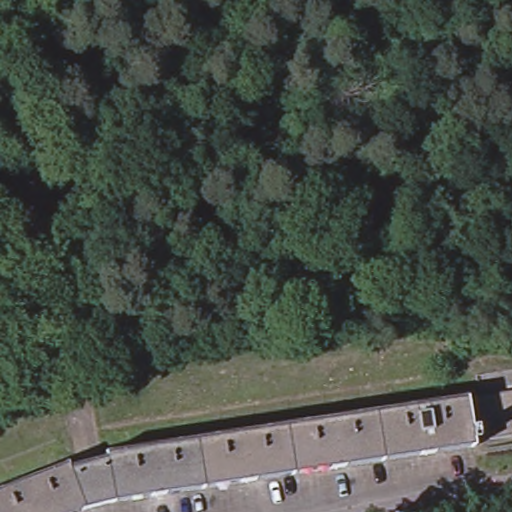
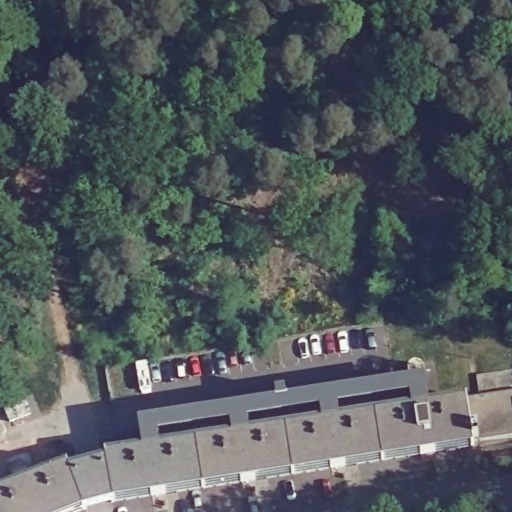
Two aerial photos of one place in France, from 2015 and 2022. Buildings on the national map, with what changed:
unchanged [(475,375),(512,369),(512,435),(472,442),(465,398),(478,396),(475,375)]
unchanged [(110,452),(465,398),(472,442),(472,447),(122,501),(112,502),(85,508),(66,463),(104,453),(110,452)]
unchanged [(0,512),(0,489),(66,463),(85,508),(75,512),(0,512)]

